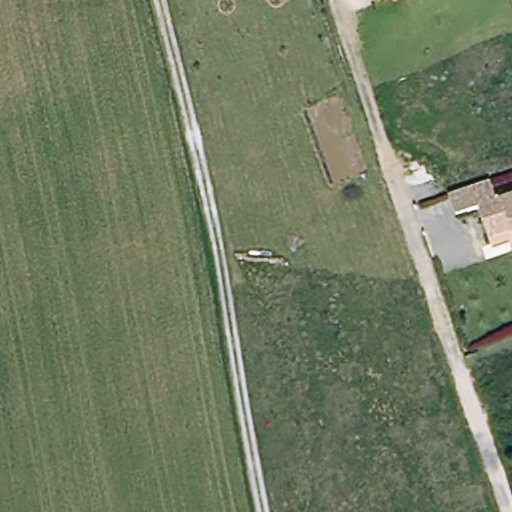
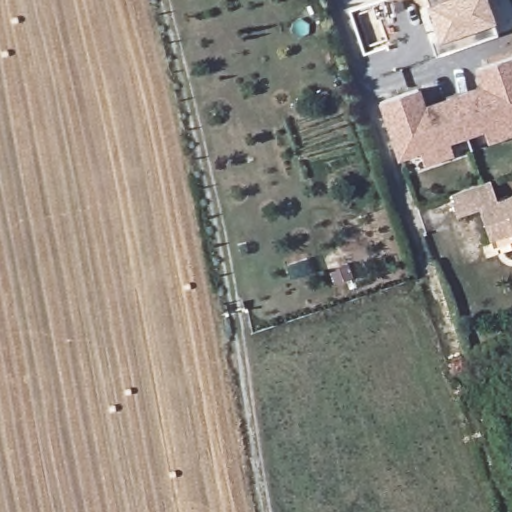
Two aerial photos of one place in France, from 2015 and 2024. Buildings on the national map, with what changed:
new [(492,21),(496,33),(436,54),(431,40),(436,36),(425,4),(427,4),(426,0),(487,0),(494,20),(492,21)]
new [(424,166),(421,153),(397,161),(379,101),(419,88),(425,105),(479,86),(474,69),(512,56),(512,136),(488,144),(484,131),(450,144),(454,156),(424,166)]
unchanged [(493,240),(489,230),(482,209),(459,216),(452,194),(493,181),(499,202),(512,197),(512,233),(493,240)]

